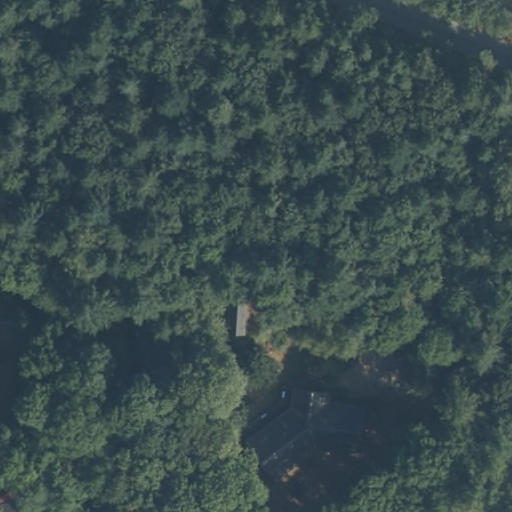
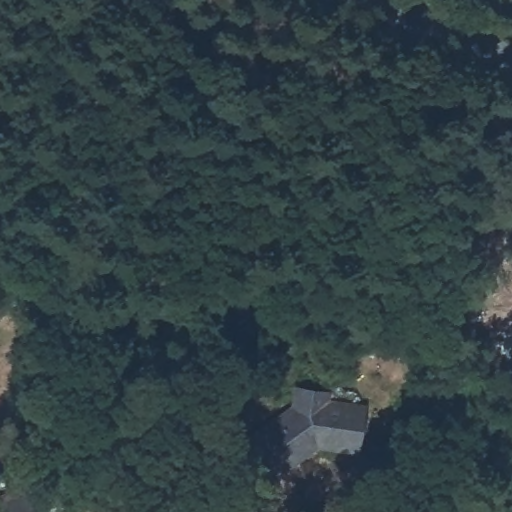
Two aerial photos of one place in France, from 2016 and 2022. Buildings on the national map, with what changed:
unchanged [(223,282),(250,281),(247,331),(221,329),(223,282)]
unchanged [(323,392),(322,397),(356,405),(352,447),(317,442),(315,435),(304,434),(294,442),(294,460),(273,472),(248,436),(267,421),(280,420),(290,413),(294,388),(323,392)]
unchanged [(35,506),(40,505),(43,512),(0,512),(0,500),(28,491),(35,506)]

